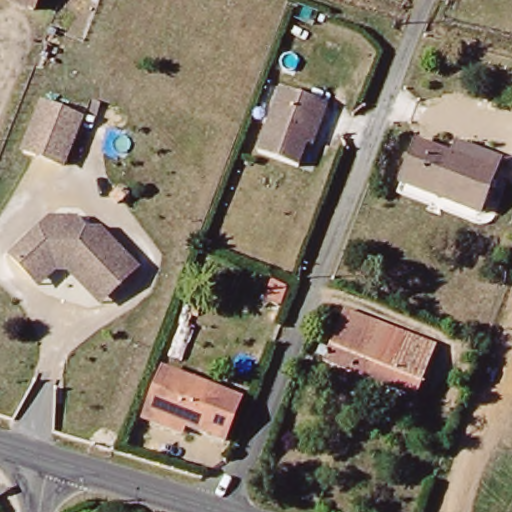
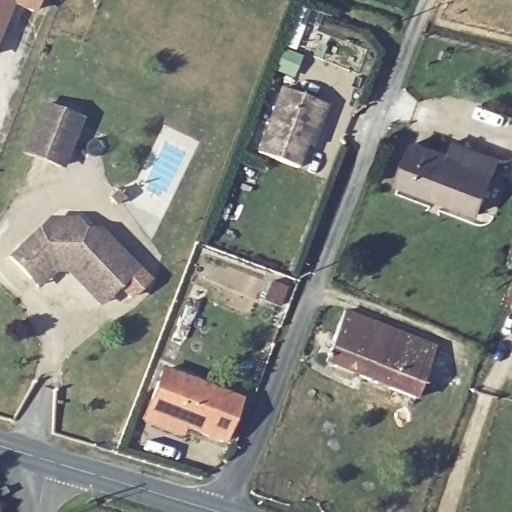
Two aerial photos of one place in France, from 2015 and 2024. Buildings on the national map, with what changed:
new [(6,0),(12,3),(0,36),(0,0),(6,0)]
unchanged [(6,0),(37,0),(33,11),(6,0)]
unchanged [(300,166),(260,151),(284,88),(329,105),(323,119),(315,145),(308,143),(300,166)]
unchanged [(31,148),(47,104),(83,117),(67,161),(31,148)]
unchanged [(415,141),(447,155),(452,144),(496,161),(473,215),(397,183),(415,141)]
unchanged [(65,266),(53,265),(36,282),(28,274),(10,255),(47,218),(70,218),(88,237),(96,229),(130,265),(103,290),(95,298),(65,266)]
unchanged [(334,315),(374,331),(378,322),(439,347),(430,372),(416,366),(403,401),(314,366),(334,315)]
unchanged [(143,420),(147,409),(161,372),(234,397),(221,436),(187,425),(184,435),(143,420)]

